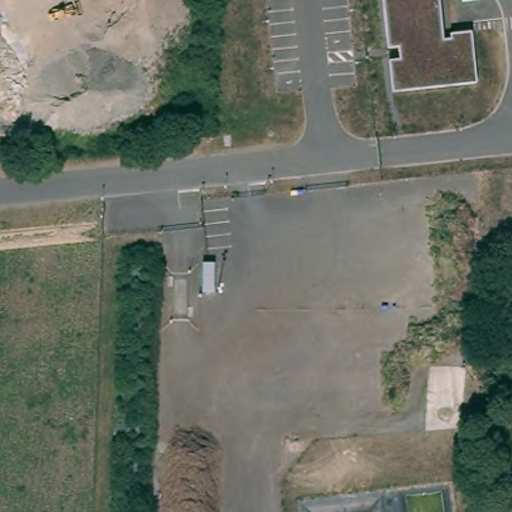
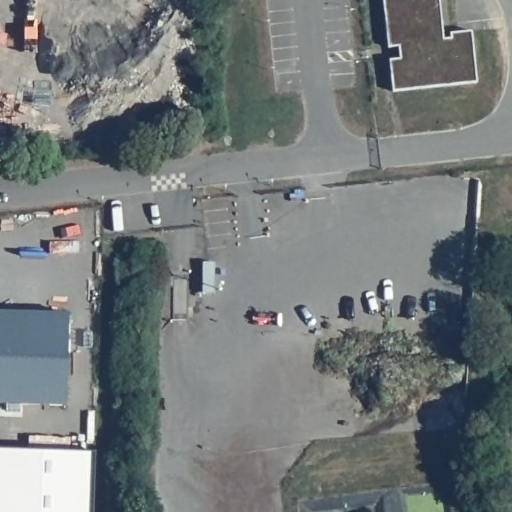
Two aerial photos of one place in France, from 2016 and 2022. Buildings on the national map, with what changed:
unchanged [(444,45),(443,40),(464,37),(471,89),(386,99),(382,67),(393,65),(391,54),(381,55),(374,0),(431,0),(436,46),(444,45)]
new [(65,405),(0,403),(0,311),(69,313),(65,405)]
new [(93,512),(0,512),(0,448),(95,451),(93,512)]

